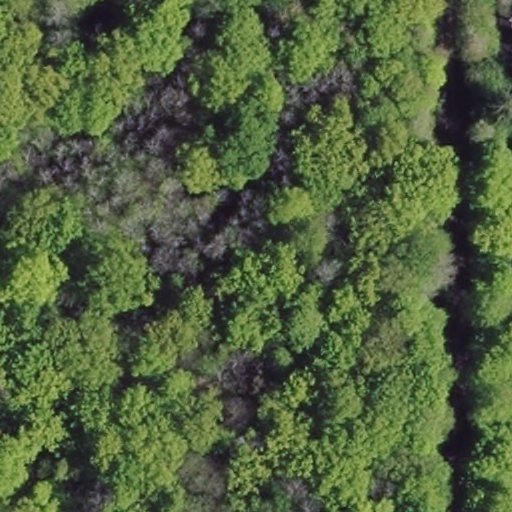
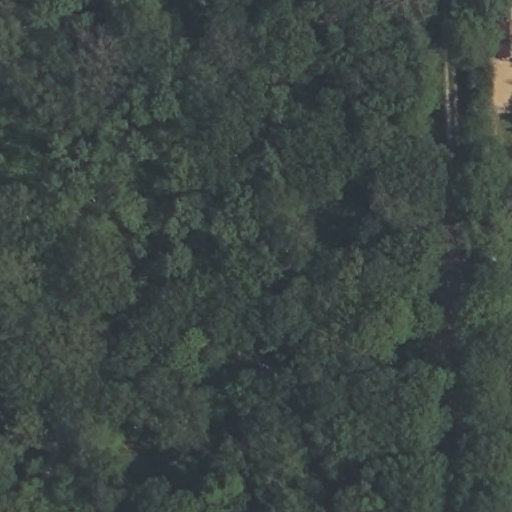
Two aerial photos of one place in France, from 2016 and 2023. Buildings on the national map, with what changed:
unchanged [(498,56),(498,42),(498,3),(512,3),(512,56),(498,56)]

